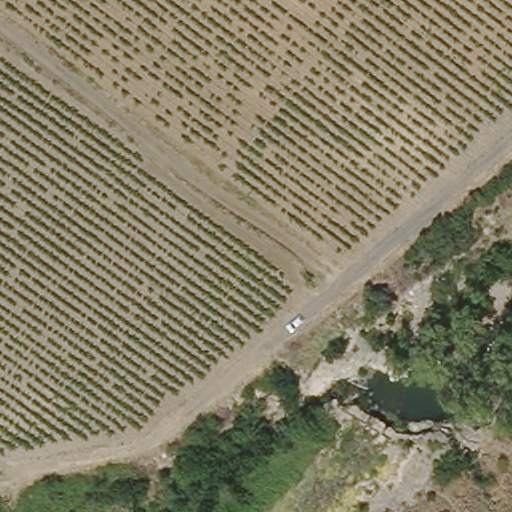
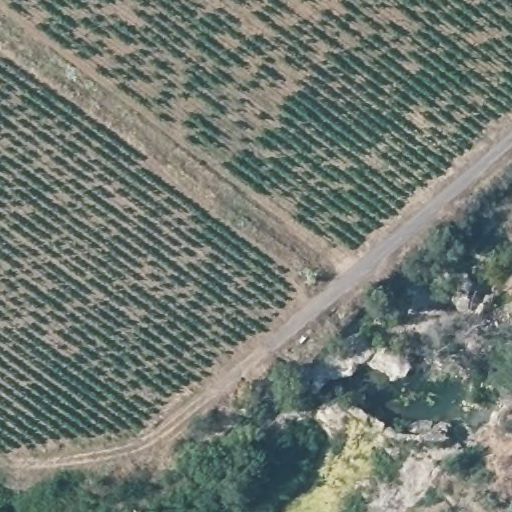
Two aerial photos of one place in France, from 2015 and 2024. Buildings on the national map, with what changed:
unchanged [(502,206),(492,192),(502,183),(512,197),(512,199),(502,206)]

